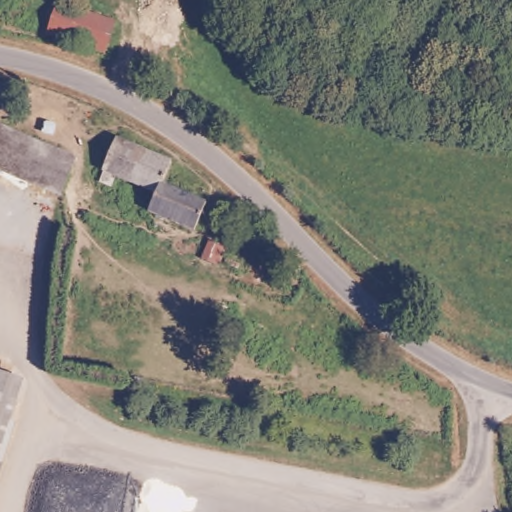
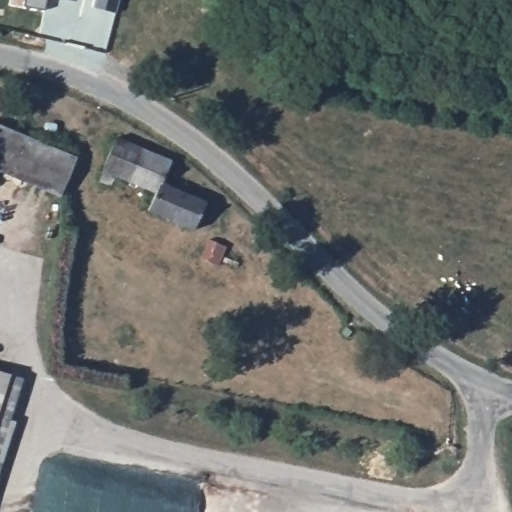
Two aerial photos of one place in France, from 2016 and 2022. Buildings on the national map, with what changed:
new [(46,8),(24,4),(25,0),(48,0),(46,8)]
demolished [(118,16),(108,46),(48,33),(57,0),(118,16)]
new [(94,6),(95,0),(119,0),(116,12),(94,6)]
unchanged [(56,198),(0,171),(0,125),(75,161),(56,198)]
unchanged [(171,159),(163,179),(203,199),(189,226),(145,206),(151,189),(104,164),(120,133),(171,159)]
unchanged [(0,364),(24,372),(11,413),(21,416),(12,446),(0,443),(0,364)]
unchanged [(0,484),(0,443),(12,446),(0,484)]

